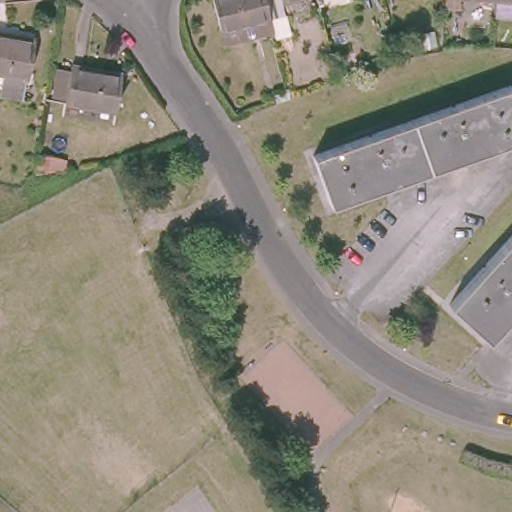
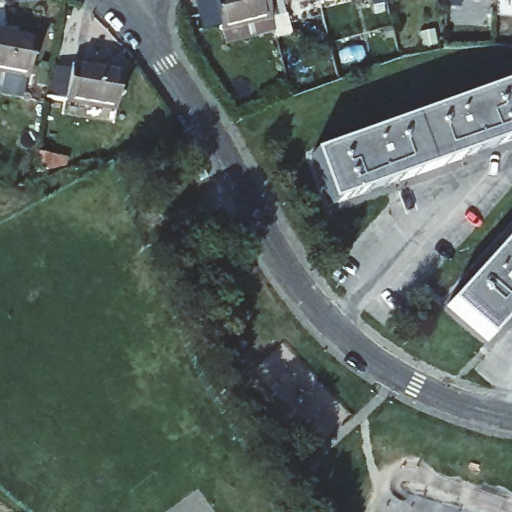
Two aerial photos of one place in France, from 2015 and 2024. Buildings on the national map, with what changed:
unchanged [(216,31),(209,5),(208,0),(262,0),(266,17),(216,31)]
unchanged [(282,13),(266,17),(262,0),(286,0),(279,2),(282,13)]
unchanged [(31,37),(25,78),(0,73),(0,32),(31,37)]
unchanged [(112,107),(62,98),(70,62),(119,71),(112,107)]
unchanged [(440,145),(443,104),(453,100),(509,80),(512,88),(512,133),(472,148),(440,145)]
unchanged [(328,201),(310,152),(443,104),(440,145),(472,148),(328,201)]
unchanged [(449,300),(512,231),(512,308),(488,335),(449,300)]

